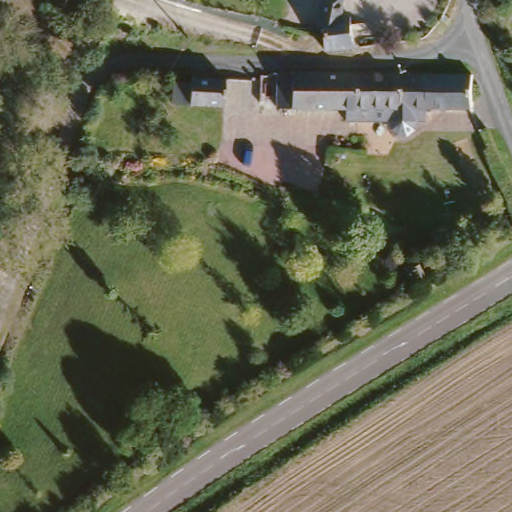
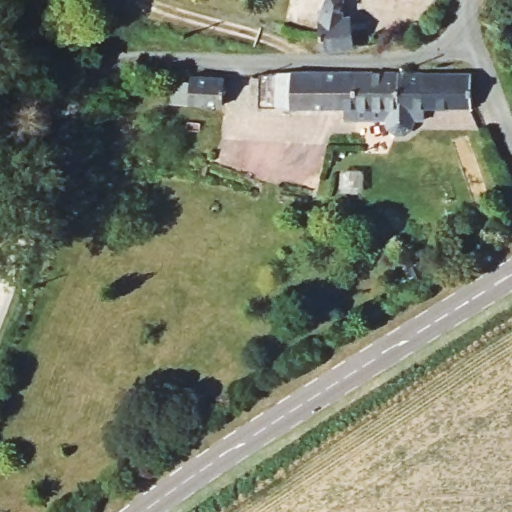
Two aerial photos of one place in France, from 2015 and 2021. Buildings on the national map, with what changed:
unchanged [(319,17),(324,0),(342,0),(343,9),(349,7),(350,12),(358,11),(359,26),(353,26),(355,42),(326,46),(319,17)]
unchanged [(392,69),(392,131),(383,125),(382,122),(378,121),(379,120),(337,116),(337,105),(271,101),(273,66),(392,69)]
unchanged [(467,70),(467,103),(417,105),(418,117),(413,117),(403,130),(392,131),(392,69),(467,70)]
unchanged [(180,99),(182,77),(198,78),(198,70),(234,74),(232,101),(197,99),(197,100),(180,99)]

